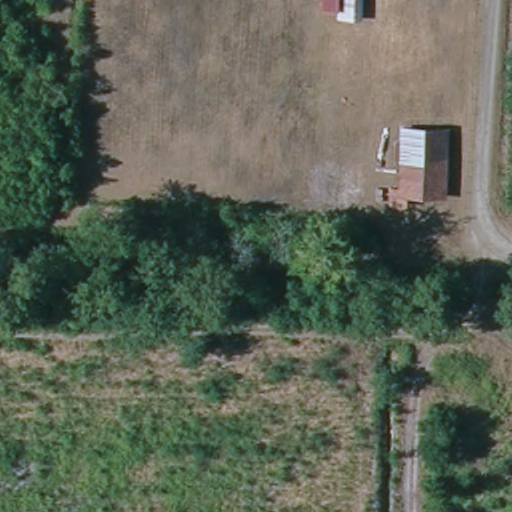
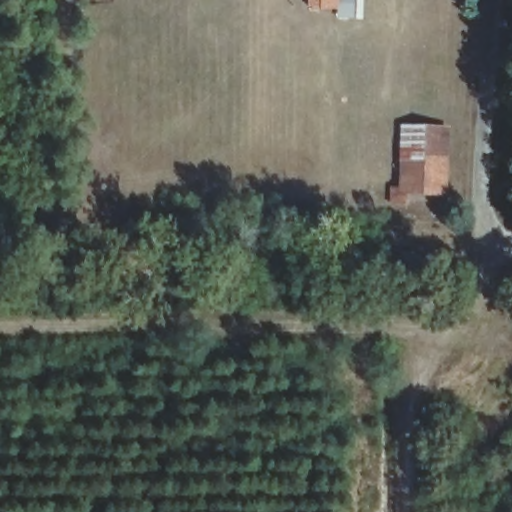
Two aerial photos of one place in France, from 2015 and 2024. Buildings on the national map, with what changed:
unchanged [(338,19),(339,0),(364,0),(363,20),(338,19)]
unchanged [(441,130),(437,193),(394,190),(399,128),(441,130)]

